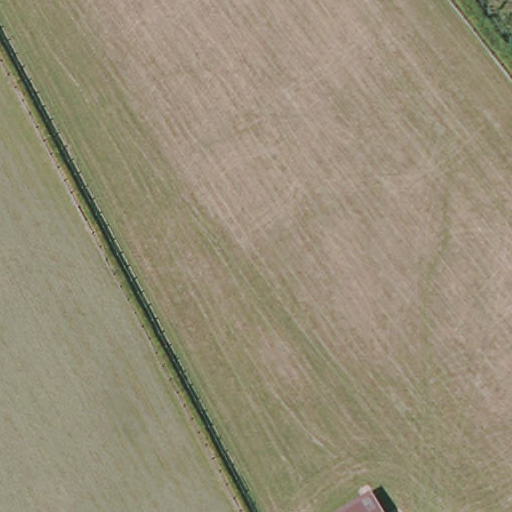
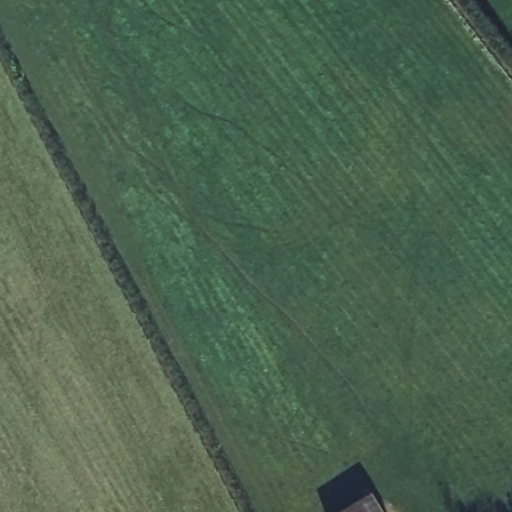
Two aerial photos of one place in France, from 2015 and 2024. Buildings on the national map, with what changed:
unchanged [(379,512),(348,512),(372,498),(379,512)]

